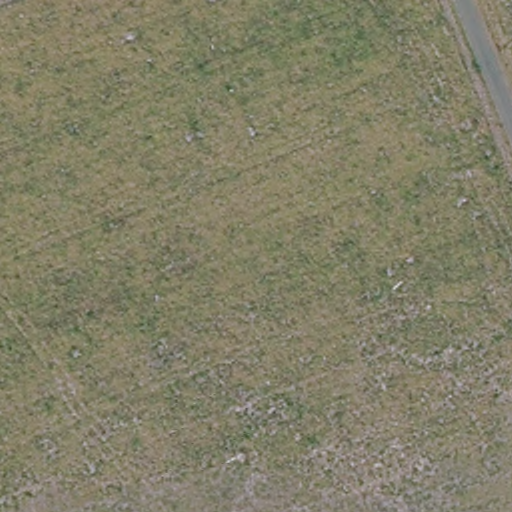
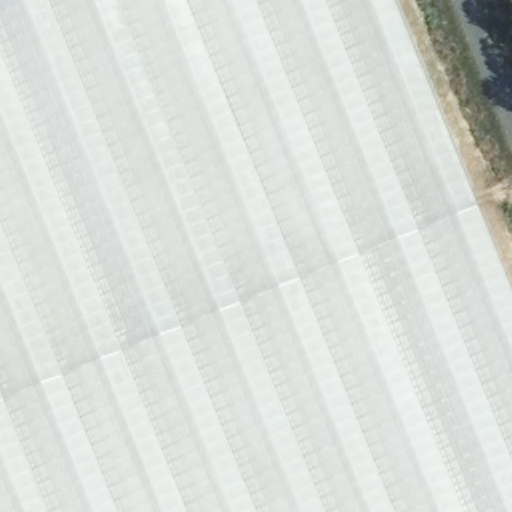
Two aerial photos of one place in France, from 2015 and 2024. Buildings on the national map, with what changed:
new [(512,283),(512,512),(0,512),(0,0),(398,0),(512,283)]

